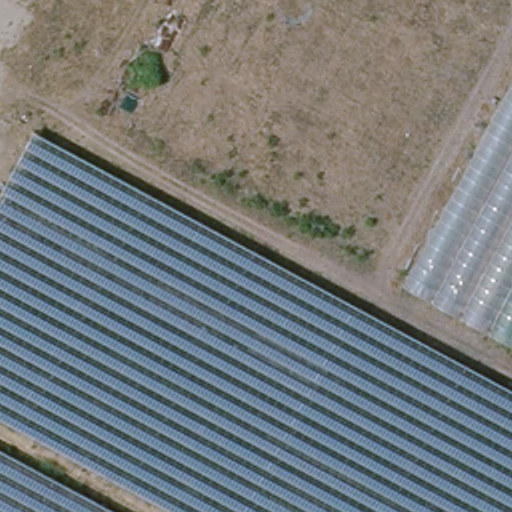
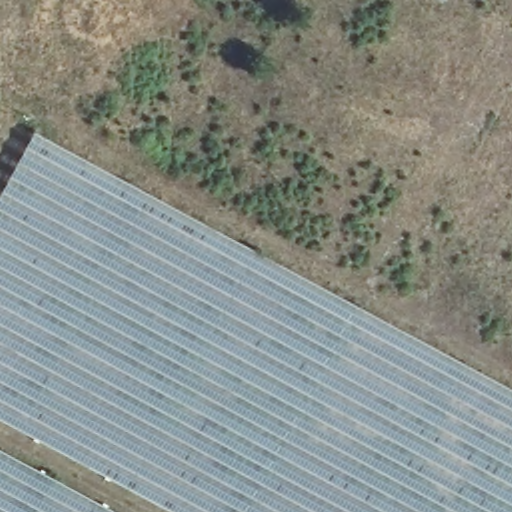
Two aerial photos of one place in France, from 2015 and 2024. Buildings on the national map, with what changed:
demolished [(512,82),(512,343),(404,285),(512,82)]
unchanged [(512,512),(176,512),(0,416),(0,192),(34,130),(512,387),(512,512)]
unchanged [(0,512),(0,445),(123,512),(0,512)]

